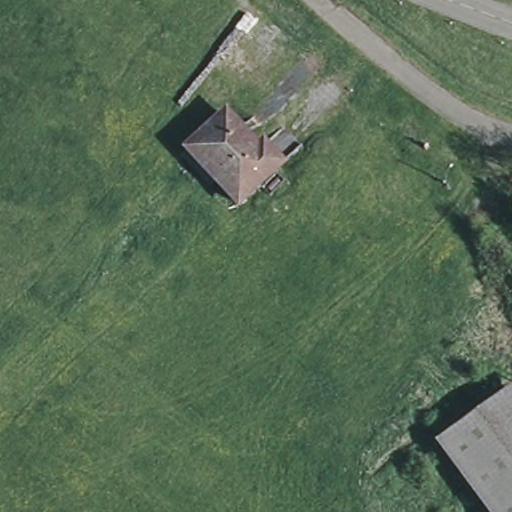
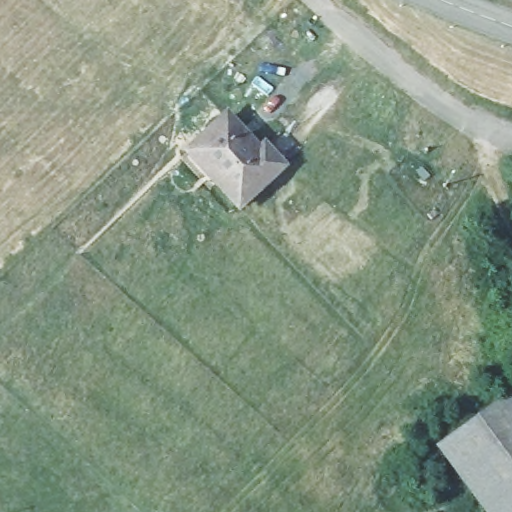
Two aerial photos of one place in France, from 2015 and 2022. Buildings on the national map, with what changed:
unchanged [(252,153),(258,147),(276,167),(235,206),(184,149),(219,117),(252,153)]
unchanged [(512,512),(487,512),(435,443),(512,384),(512,512)]

